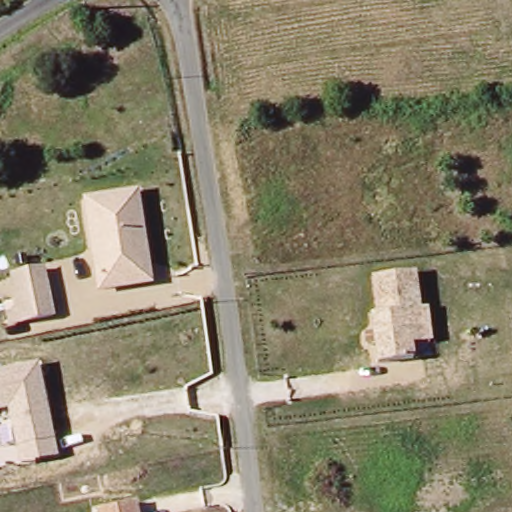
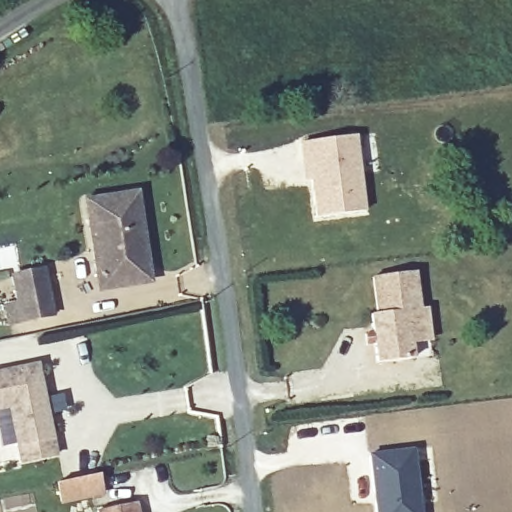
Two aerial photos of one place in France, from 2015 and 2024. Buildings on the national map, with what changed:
new [(357,135),(366,210),(313,218),(308,181),(304,182),(298,141),(357,135)]
unchanged [(98,295),(96,280),(85,207),(124,201),(134,200),(139,233),(145,273),(148,288),(98,295)]
unchanged [(16,303),(10,277),(41,270),(52,316),(7,326),(3,305),(16,303)]
unchanged [(415,271),(421,306),(428,305),(430,319),(408,322),(414,359),(379,363),(372,315),(379,314),(374,278),(415,271)]
unchanged [(58,459),(18,465),(8,409),(0,411),(0,369),(38,362),(58,459)]
new [(417,445),(422,512),(375,512),(368,452),(417,445)]
unchanged [(139,502),(140,512),(96,512),(96,510),(139,502)]

